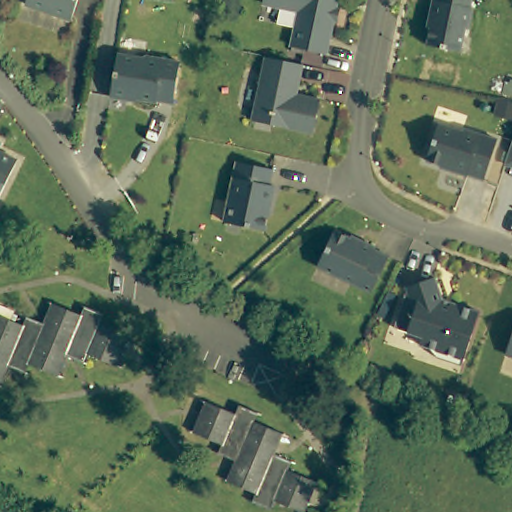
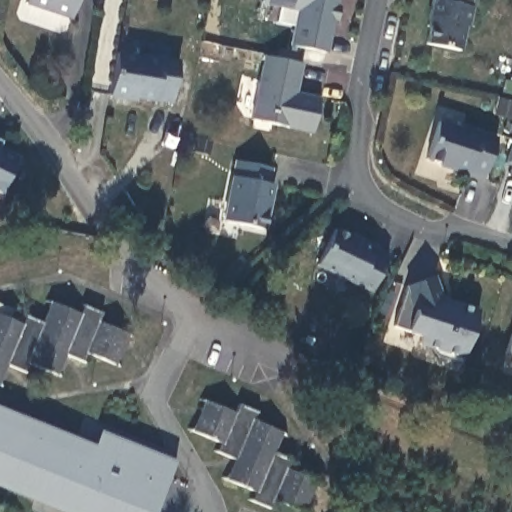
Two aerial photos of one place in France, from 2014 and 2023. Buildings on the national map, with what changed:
unchanged [(25,0),(71,0),(65,15),(25,0)]
unchanged [(287,44),(295,6),(265,0),(332,0),(322,50),(287,44)]
unchanged [(468,5),(464,25),(461,25),(456,49),(422,42),(426,24),(423,23),(428,0),(467,0),(466,4),(468,5)]
unchanged [(171,99),(154,96),(154,97),(127,92),(126,95),(110,92),(118,50),(141,54),(144,51),(179,57),(171,99)]
unchanged [(303,60),(299,77),(295,76),(293,90),(320,96),(314,130),(252,119),(266,52),(303,60)]
unchanged [(457,128),(458,125),(494,137),(483,179),(449,170),(449,167),(424,160),(436,121),(457,128)]
unchanged [(0,140),(0,138),(1,139),(0,140)]
unchanged [(0,148),(16,156),(0,189),(0,148)]
unchanged [(509,161),(512,154),(512,162),(509,161)]
unchanged [(273,162),(269,179),(274,180),(264,224),(224,215),(237,155),(273,162)]
unchanged [(360,238),(362,235),(377,242),(376,245),(390,252),(374,288),(319,263),(334,226),(360,238)]
unchanged [(434,272),(444,296),(478,306),(459,361),(435,353),(437,346),(417,340),(420,331),(393,322),(404,281),(434,272)]
unchanged [(24,315),(44,322),(51,305),(84,316),(88,307),(102,312),(98,321),(125,331),(115,358),(85,350),(83,355),(70,352),(61,375),(28,363),(24,372),(5,366),(0,381),(0,317),(20,324),(24,315)]
unchanged [(504,348),(512,325),(512,351),(504,348)]
unchanged [(468,406),(454,401),(457,392),(471,397),(468,406)]
unchanged [(232,408),(235,400),(257,408),(253,422),(282,432),(275,454),(287,457),(283,470),(308,478),(298,508),(295,507),(274,498),(270,508),(251,501),(254,491),(225,480),(236,455),(216,448),(221,436),(194,427),(205,400),(232,408)]
new [(101,430),(176,460),(156,512),(58,512),(0,489),(0,408),(94,445),(101,430)]

